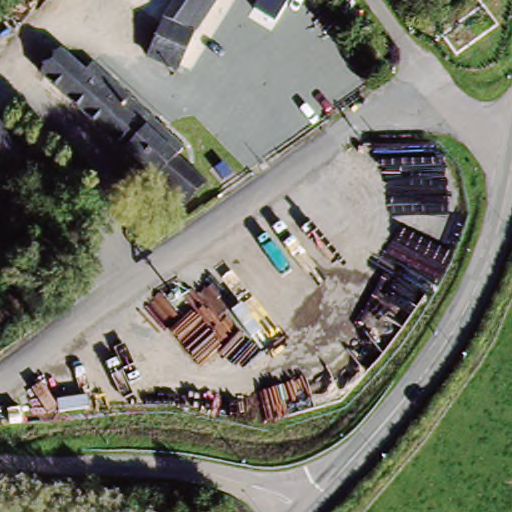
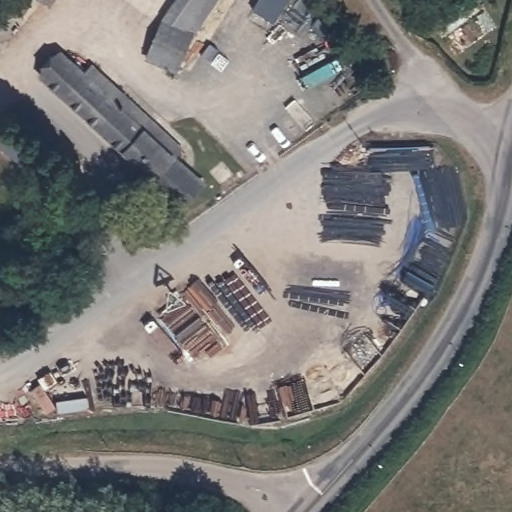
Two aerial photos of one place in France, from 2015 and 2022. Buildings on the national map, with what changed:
unchanged [(54,2),(50,0),(56,0),(54,2)]
unchanged [(175,0),(217,0),(192,35),(159,23),(175,0)]
unchanged [(259,0),(288,0),(275,22),(255,6),(259,0)]
unchanged [(159,23),(192,35),(186,49),(177,72),(145,59),(147,54),(152,39),(155,31),(159,23)]
unchanged [(57,56),(75,72),(85,64),(175,146),(167,155),(195,181),(172,204),(35,80),(57,56)]
unchanged [(9,124),(39,150),(25,165),(0,143),(0,135),(9,124)]

